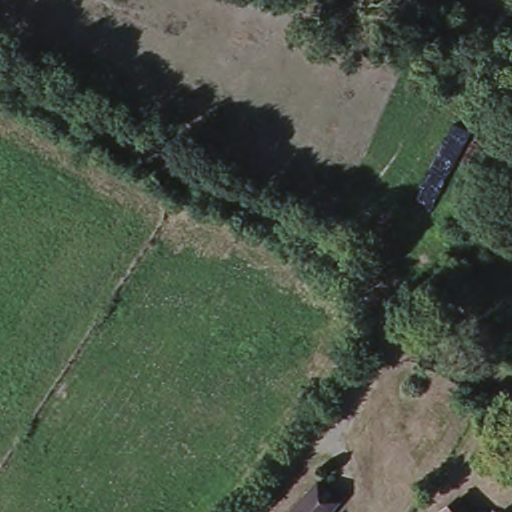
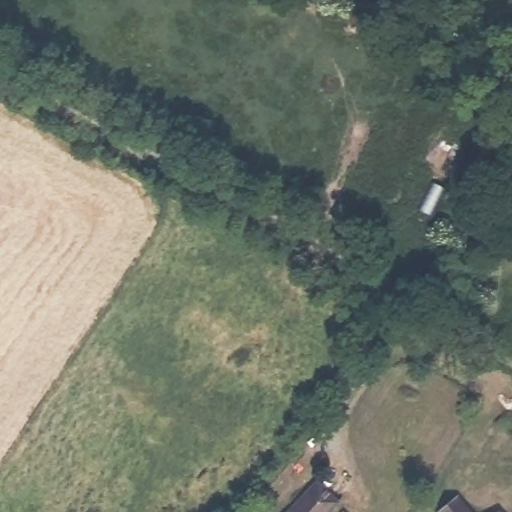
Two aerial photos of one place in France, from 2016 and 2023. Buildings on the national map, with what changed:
unchanged [(326,512),(288,512),(312,482),(336,500),(326,512)]
unchanged [(464,497),(475,512),(443,512),(464,497)]

